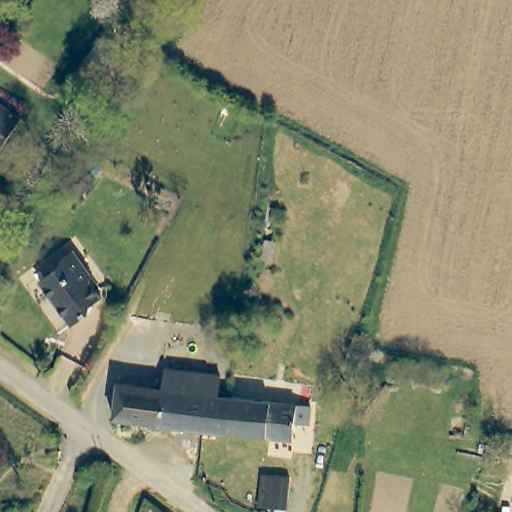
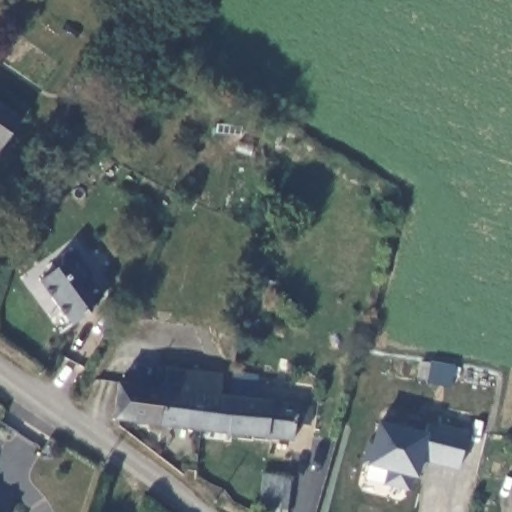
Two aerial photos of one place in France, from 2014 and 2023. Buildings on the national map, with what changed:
unchanged [(21,120),(0,146),(0,104),(21,120)]
unchanged [(79,249),(94,271),(88,275),(103,297),(92,304),(91,315),(77,323),(43,282),(69,264),(65,258),(79,249)]
unchanged [(113,419),(116,387),(163,391),(165,368),(219,373),(216,394),(208,393),(202,428),(113,419)]
unchanged [(208,393),(216,394),(232,396),(313,404),(312,422),(298,421),(296,437),(202,428),(208,393)]
new [(458,471),(422,461),(416,479),(411,478),(409,492),(385,486),(387,472),(367,467),(361,466),(366,440),(372,441),(377,420),(425,433),(429,422),(468,433),(458,471)]
new [(292,475),(288,512),(258,512),(262,474),(292,475)]

